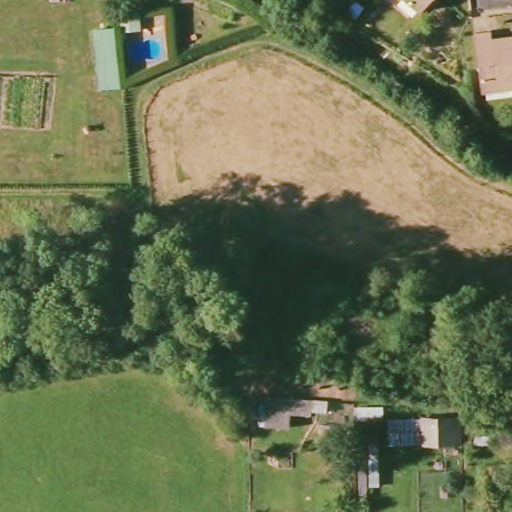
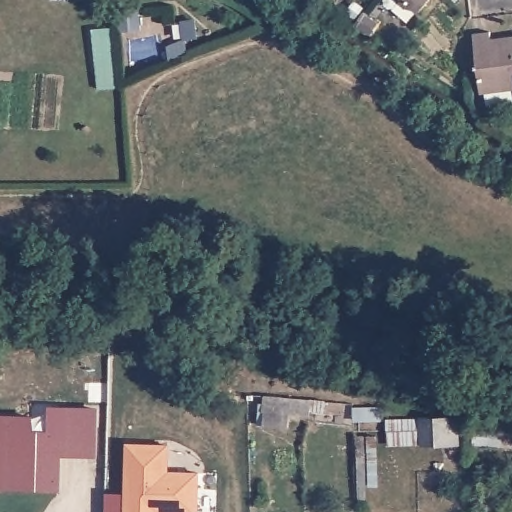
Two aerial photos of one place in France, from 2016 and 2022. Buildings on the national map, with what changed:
unchanged [(407,0),(426,0),(417,9),(407,0)]
unchanged [(113,29),(118,92),(94,94),(89,32),(113,29)]
unchanged [(491,35),(491,42),(512,40),(512,90),(481,94),(474,36),(491,35)]
new [(260,425),(262,395),(327,399),(326,412),(311,410),(310,415),(290,414),(289,428),(260,425)]
new [(0,489),(0,413),(35,415),(34,430),(49,430),(50,406),(99,407),(98,456),(63,456),(62,490),(0,489)]
unchanged [(459,448),(386,446),(387,421),(457,422),(459,448)]
unchanged [(470,422),(512,427),(512,447),(469,445),(470,422)]
unchanged [(378,490),(366,490),(366,503),(355,505),(353,437),(376,438),(378,490)]
new [(126,442),(170,443),(170,470),(201,471),(200,512),(123,512),(126,442)]

